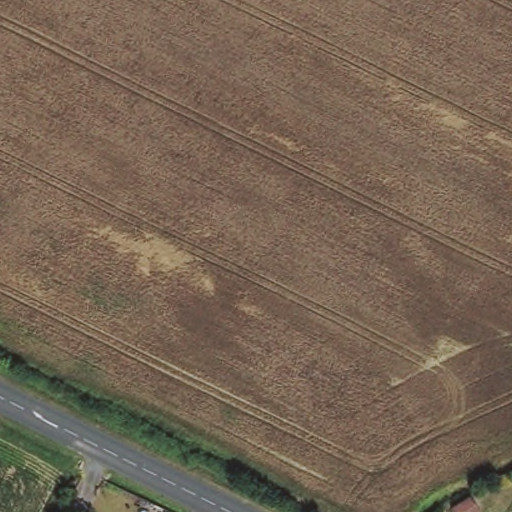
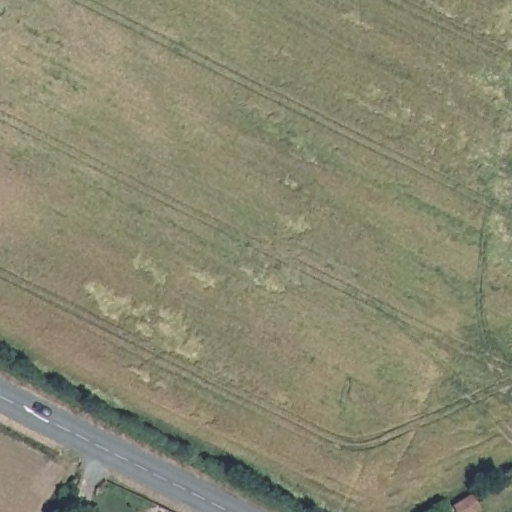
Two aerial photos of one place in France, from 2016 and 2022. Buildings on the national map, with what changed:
unchanged [(481,511),(479,512),(455,512),(452,507),(470,495),(481,511)]

